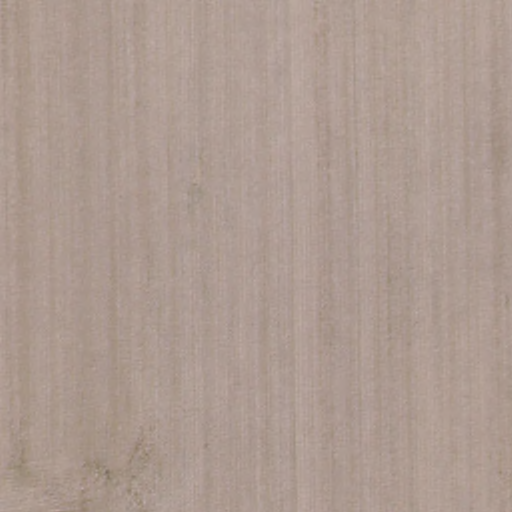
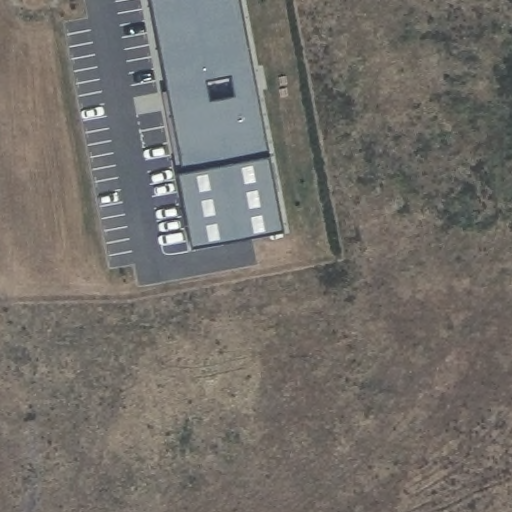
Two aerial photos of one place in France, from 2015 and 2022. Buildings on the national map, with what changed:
new [(238,0),(281,227),(189,245),(174,169),(159,89),(164,88),(147,0),(238,0)]

